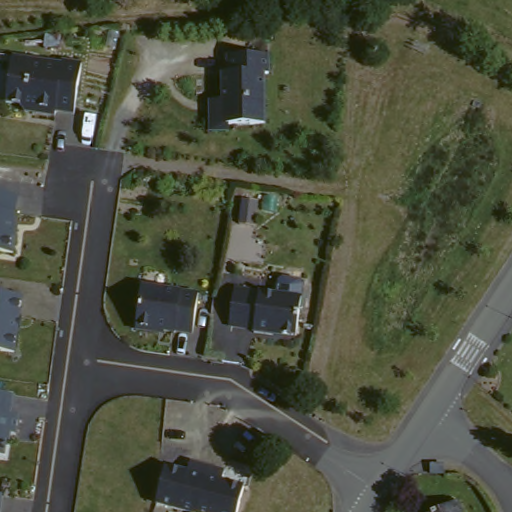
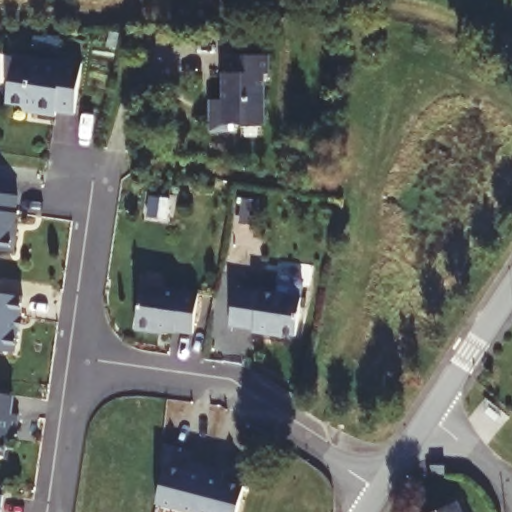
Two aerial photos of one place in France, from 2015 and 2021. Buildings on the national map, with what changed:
unchanged [(215,136),(215,97),(228,97),(228,70),(233,70),(233,53),(274,52),(274,71),(269,71),(270,122),(234,122),(234,136),(215,136)]
unchanged [(64,64),(64,61),(85,63),(79,114),(59,112),(59,116),(25,112),(19,105),(8,104),(13,58),(64,64)]
unchanged [(23,192),(20,210),(22,210),(19,232),(21,233),(19,250),(0,247),(0,189),(23,192)]
unchanged [(183,332),(183,333),(161,330),(160,333),(143,330),(149,287),(206,295),(201,334),(183,332)]
unchanged [(24,293),(15,352),(0,349),(0,289),(24,293)]
unchanged [(308,300),(303,337),(280,334),(279,336),(261,334),(261,331),(237,327),(242,289),(308,300)]
unchanged [(15,392),(13,410),(21,411),(18,431),(10,430),(7,453),(0,452),(0,389),(15,392)]
unchanged [(170,466),(191,472),(194,462),(206,466),(194,512),(192,512),(160,503),(170,466)]
unchanged [(225,481),(246,487),(239,512),(194,512),(206,466),(227,472),(225,481)]
unchanged [(10,512),(0,512),(0,492),(13,495),(10,512)]
unchanged [(465,512),(431,512),(459,499),(465,512)]

